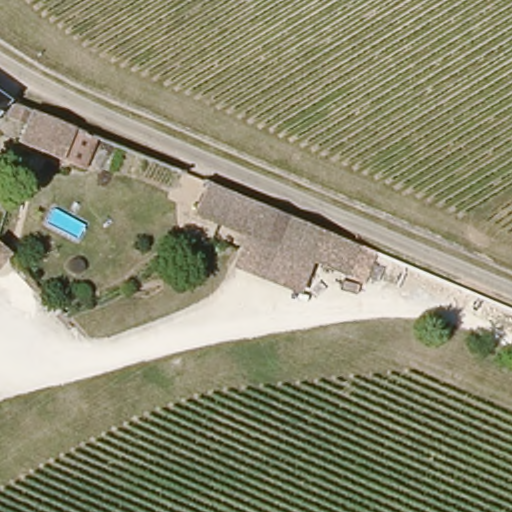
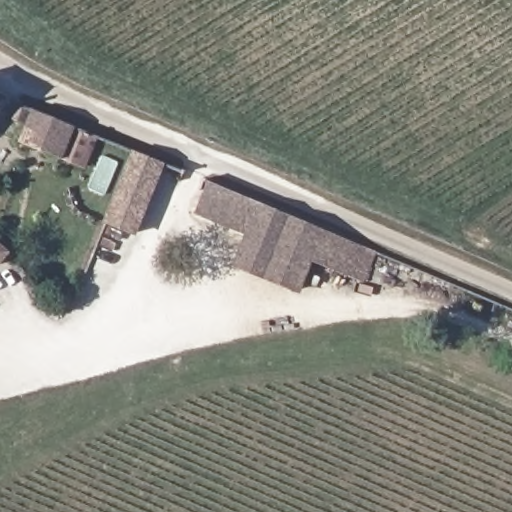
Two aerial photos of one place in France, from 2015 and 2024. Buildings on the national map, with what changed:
unchanged [(82,169),(5,136),(9,124),(0,120),(0,108),(94,149),(82,169)]
new [(162,165),(134,237),(105,224),(130,152),(162,165)]
unchanged [(250,224),(246,222),(194,200),(203,177),(259,200),(250,224)]
unchanged [(312,249),(250,224),(259,200),(322,226),(312,249)]
unchanged [(306,264),(299,281),(239,256),(235,254),(239,243),(246,222),(250,224),(312,249),(307,261),(306,264)]
unchanged [(362,243),(348,277),(307,261),(312,249),(322,226),(362,243)]
unchanged [(0,260),(0,248),(6,252),(0,260)]

